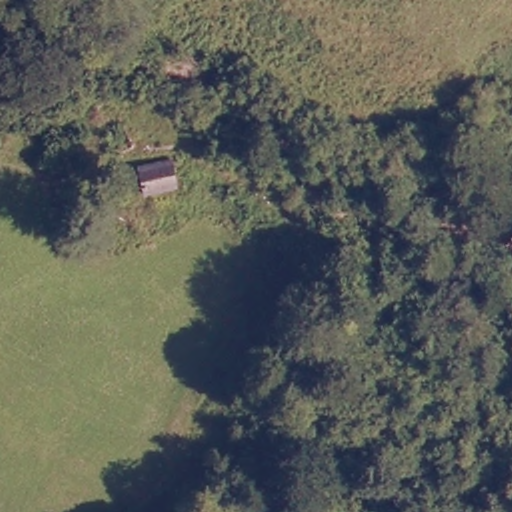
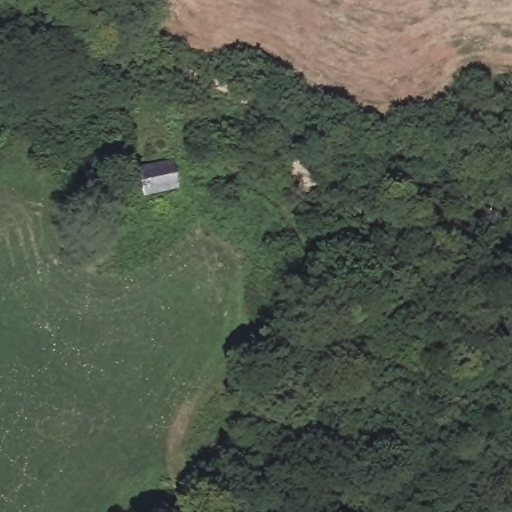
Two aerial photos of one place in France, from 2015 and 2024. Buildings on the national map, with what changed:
unchanged [(180,195),(146,201),(144,173),(176,166),(180,195)]

